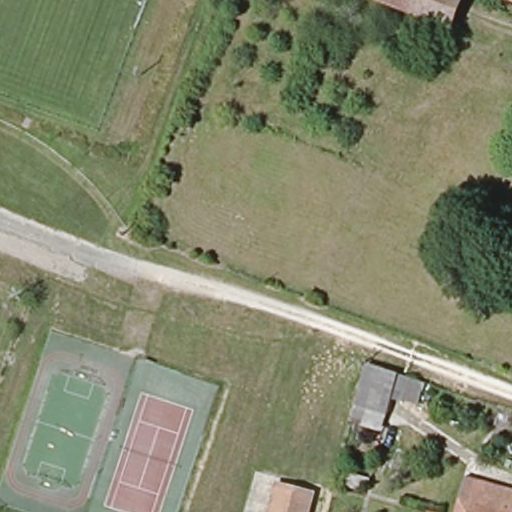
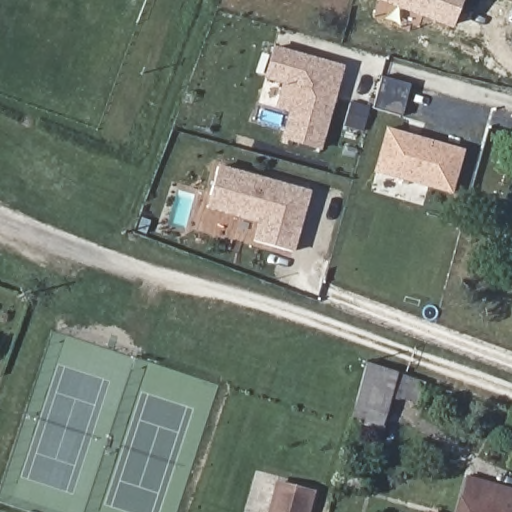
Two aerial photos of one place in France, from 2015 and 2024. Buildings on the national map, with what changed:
unchanged [(456,33),(370,0),(470,0),(456,33)]
unchanged [(509,0),(512,0),(512,1),(509,0)]
new [(342,67),(321,149),(280,138),(287,113),(277,103),(260,98),(273,48),(342,67)]
new [(463,150),(451,194),(373,172),(385,128),(463,150)]
new [(205,210),(218,164),(312,190),(295,252),(250,240),(255,224),(205,210)]
unchanged [(360,407),(370,367),(392,374),(383,413),(360,407)]
unchanged [(413,389),(410,401),(393,397),(395,385),(413,389)]
unchanged [(307,512),(271,512),(278,485),(311,495),(307,512)]
unchanged [(497,500),(512,503),(512,512),(465,512),(469,494),(497,500)]

